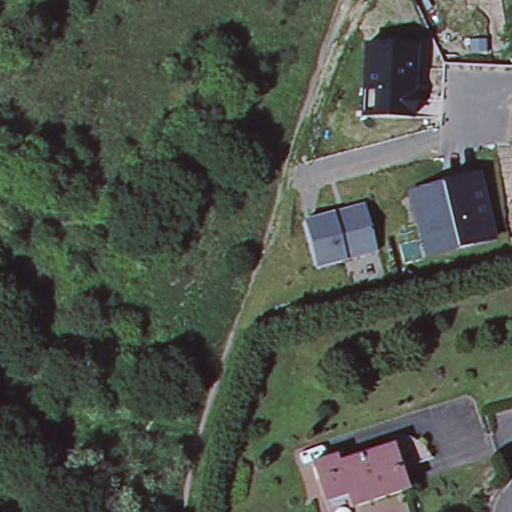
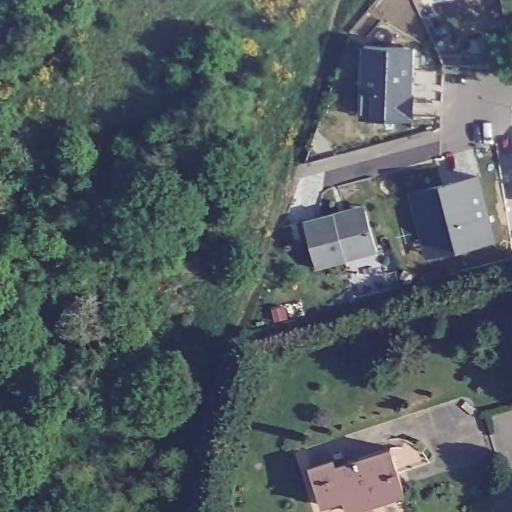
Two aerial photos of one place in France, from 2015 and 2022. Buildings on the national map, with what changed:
unchanged [(361,117),(364,47),(404,47),(414,48),(413,70),(411,119),(361,117)]
unchanged [(422,239),(412,192),(477,177),(493,241),(455,249),(426,256),(422,239)]
unchanged [(318,268),(305,221),(365,206),(378,253),(318,268)]
unchanged [(337,457),(340,463),(393,442),(403,467),(412,487),(357,507),(352,493),(330,502),(315,466),(337,457)]
unchanged [(242,480),(239,501),(225,499),(228,477),(242,480)]

